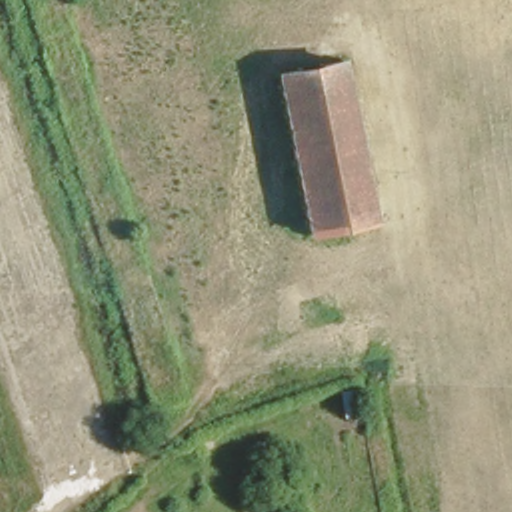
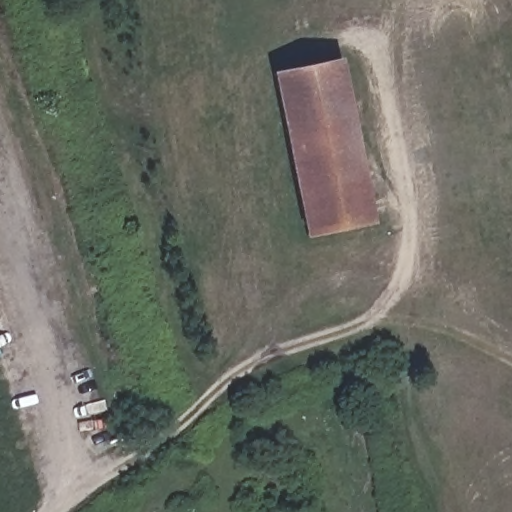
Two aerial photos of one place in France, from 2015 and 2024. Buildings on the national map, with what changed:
unchanged [(376,218),(309,233),(277,73),(342,60),(376,218)]

